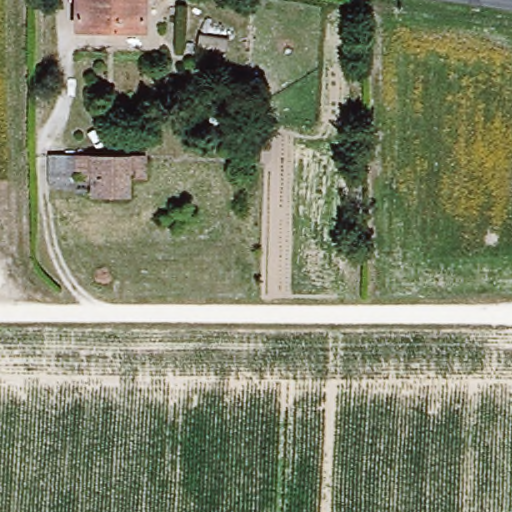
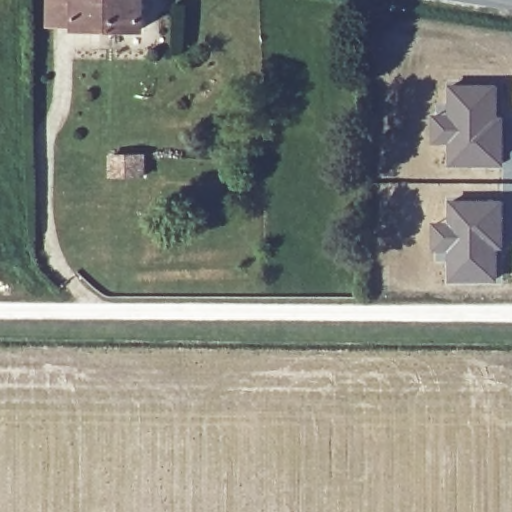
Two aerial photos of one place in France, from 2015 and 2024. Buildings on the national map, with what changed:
unchanged [(143,0),(142,29),(76,27),(77,0),(143,0)]
new [(445,112),(445,84),(498,84),(500,116),(505,116),(505,166),(446,167),(446,144),(431,145),(430,114),(445,112)]
demolished [(88,156),(130,156),(145,156),(145,177),(131,177),(131,197),(93,197),(92,179),(49,178),(46,156),(88,156)]
new [(446,220),(445,200),(505,199),(505,250),(500,250),(498,282),(446,282),(446,262),(433,262),(431,222),(446,220)]

